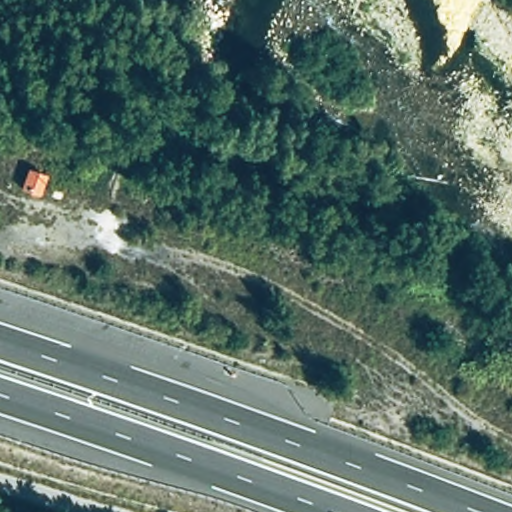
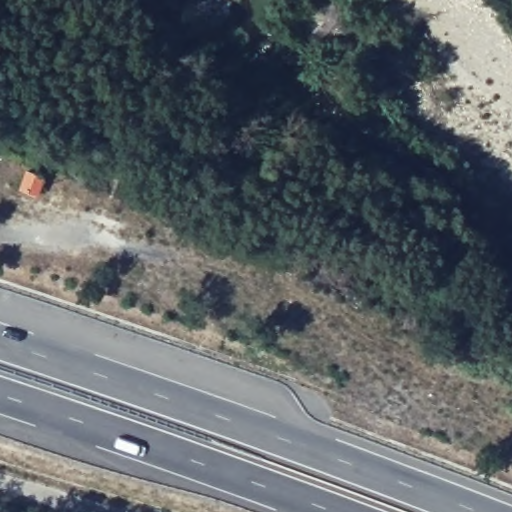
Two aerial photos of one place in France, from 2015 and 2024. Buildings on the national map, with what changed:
unchanged [(48,179),(37,200),(17,193),(25,171),(48,179)]

